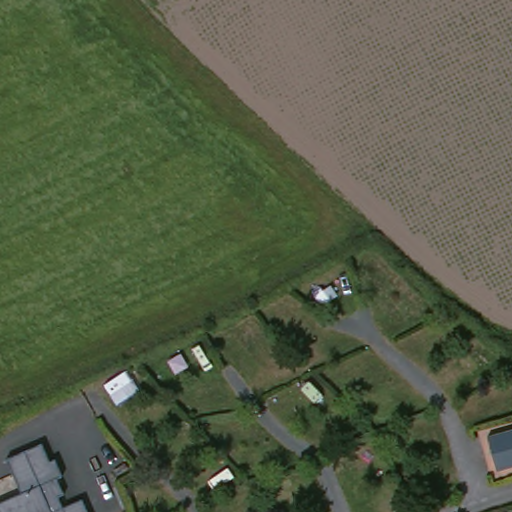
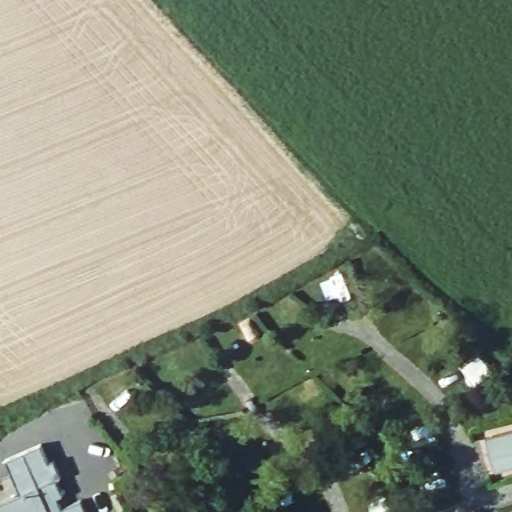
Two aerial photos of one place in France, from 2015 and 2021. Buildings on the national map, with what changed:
unchanged [(489,431),(512,422),(512,459),(502,463),(489,431)]
unchanged [(82,512),(0,512),(0,502),(16,496),(1,461),(7,458),(37,446),(45,464),(50,462),(57,479),(52,481),(59,497),(54,499),(58,509),(77,502),(82,512)]

